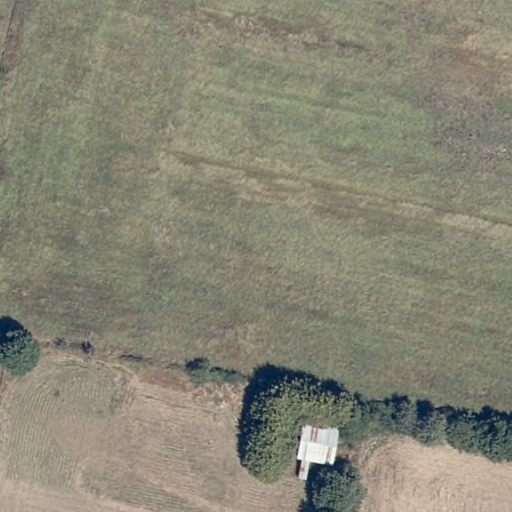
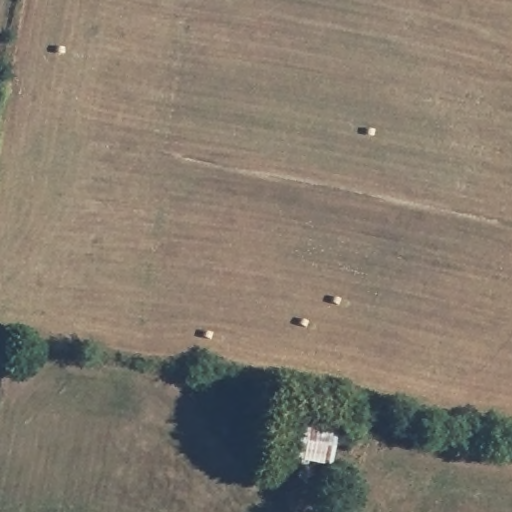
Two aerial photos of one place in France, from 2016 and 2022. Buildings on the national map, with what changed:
unchanged [(333,464),(297,460),(306,413),(345,421),(333,464)]

